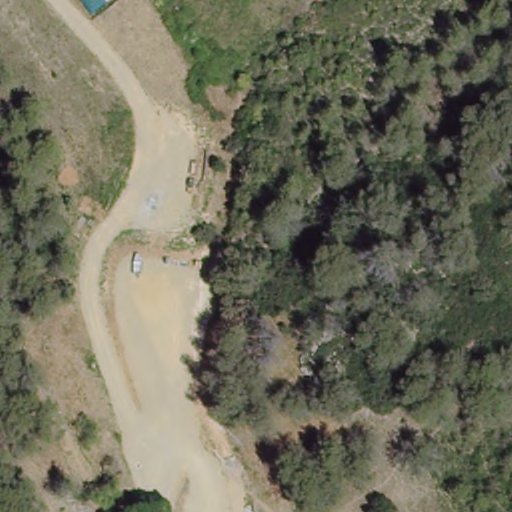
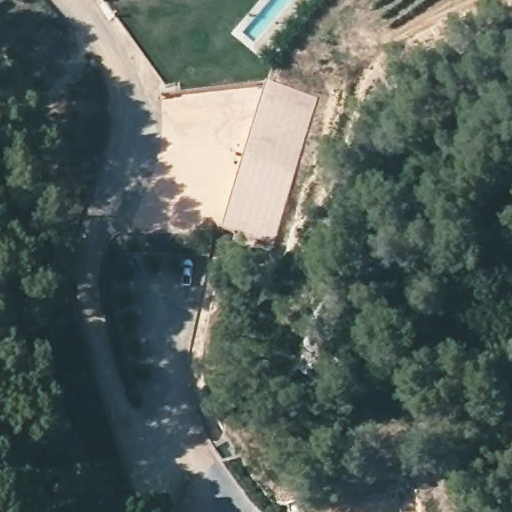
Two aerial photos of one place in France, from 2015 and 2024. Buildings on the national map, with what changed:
new [(318,97),(296,171),(246,157),(268,82),(318,97)]
new [(296,171),(275,244),(225,230),(246,157),(296,171)]
new [(398,489),(403,512),(306,512),(305,510),(398,489)]

